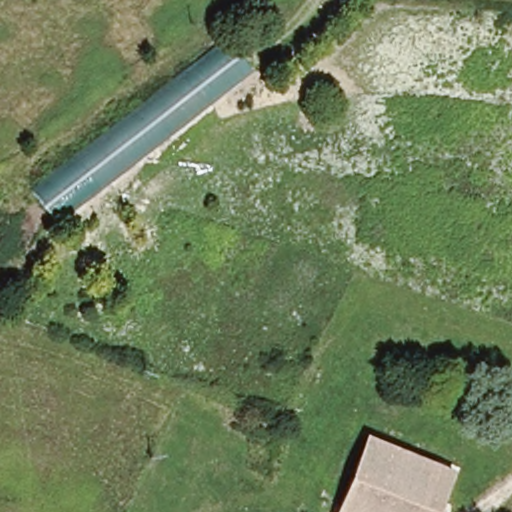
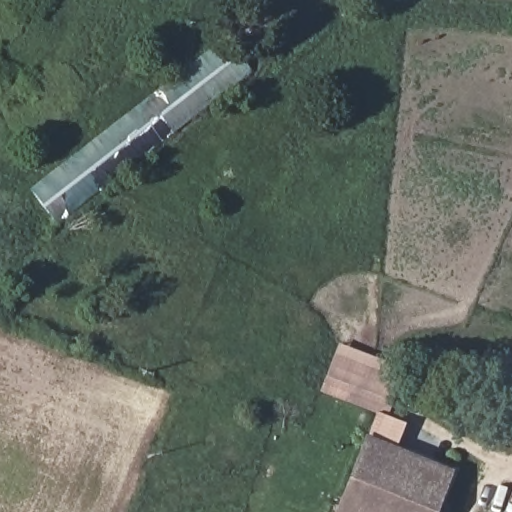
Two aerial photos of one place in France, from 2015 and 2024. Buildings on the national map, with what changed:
unchanged [(48,222),(25,186),(231,44),(257,81),(48,222)]
new [(404,368),(387,417),(406,424),(395,452),(366,440),(376,413),(320,392),(338,343),(404,368)]
unchanged [(453,476),(439,512),(337,512),(366,440),(453,476)]

